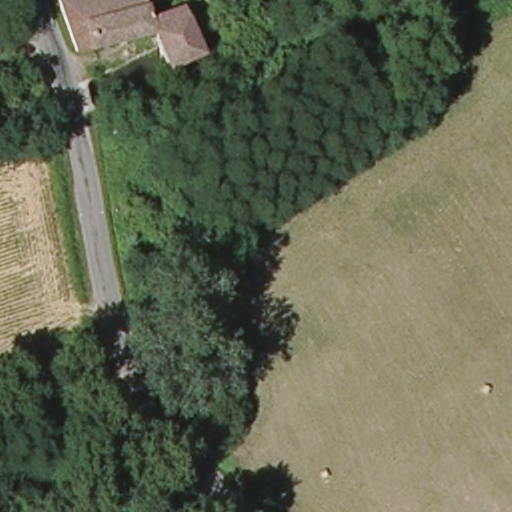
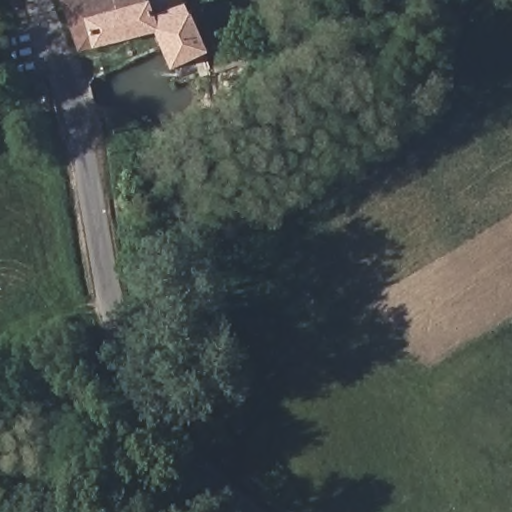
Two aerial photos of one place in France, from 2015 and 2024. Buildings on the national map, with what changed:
unchanged [(173,77),(164,54),(157,34),(80,59),(61,8),(85,0),(156,0),(159,11),(188,4),(195,18),(209,62),(173,77)]

